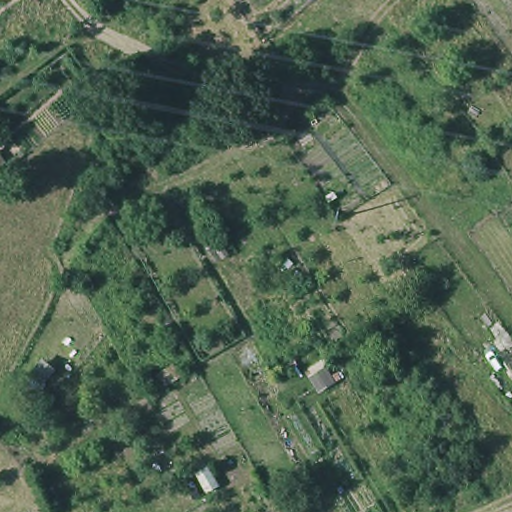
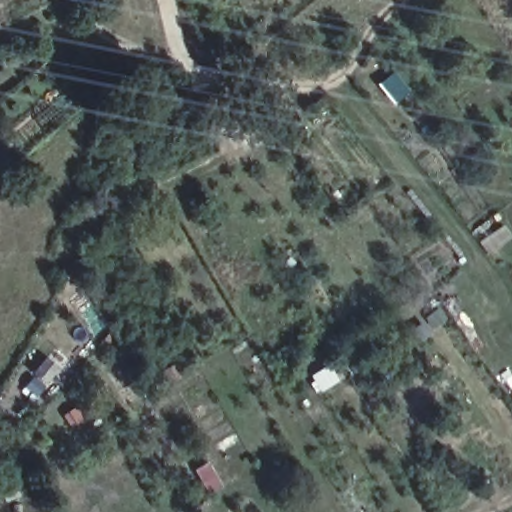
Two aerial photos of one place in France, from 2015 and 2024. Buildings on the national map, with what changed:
unchanged [(43,362),(51,369),(41,381),(33,374),(43,362)]

